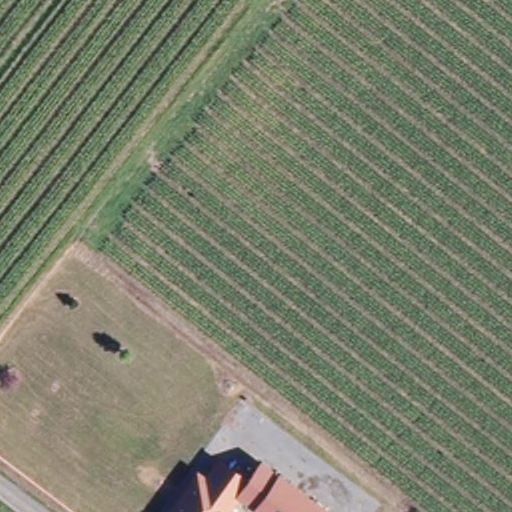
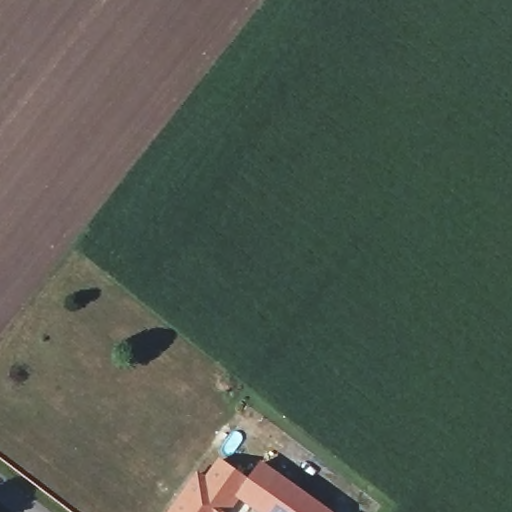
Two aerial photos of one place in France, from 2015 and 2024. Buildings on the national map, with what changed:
unchanged [(204,478),(220,458),(251,480),(261,469),(323,512),(261,512),(241,498),(230,512),(166,512),(193,470),(204,478)]

